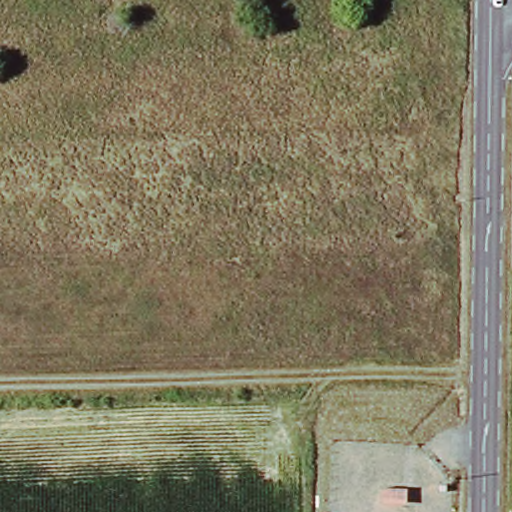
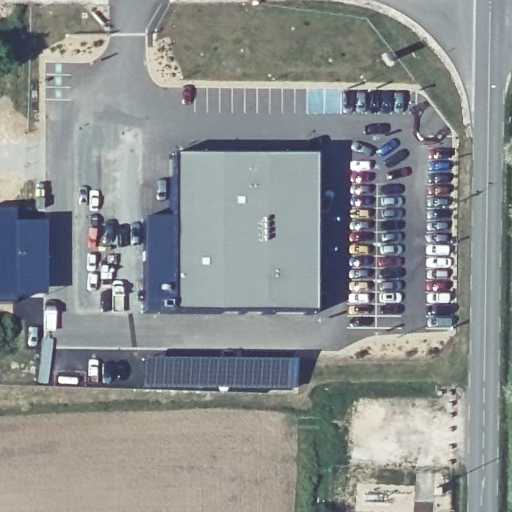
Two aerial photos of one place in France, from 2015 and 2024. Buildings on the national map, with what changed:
new [(313,157),(313,312),(171,312),(172,156),(313,157)]
new [(13,223),(42,223),(42,297),(13,297),(13,223)]

